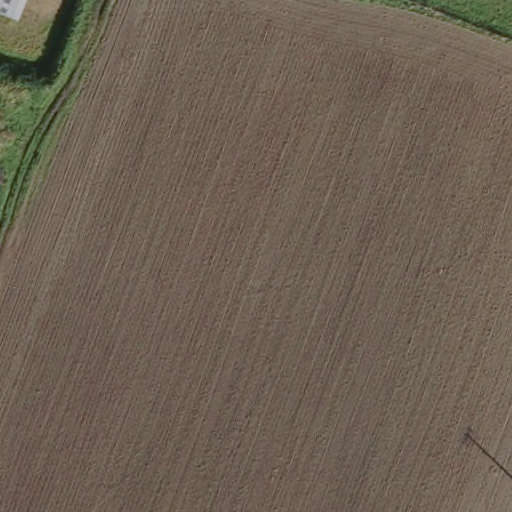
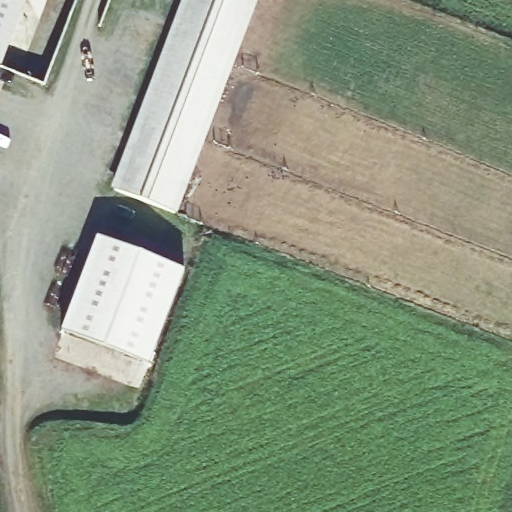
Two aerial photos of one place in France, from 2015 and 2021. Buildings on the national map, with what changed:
new [(0,68),(0,0),(28,0),(3,69),(0,68)]
new [(183,0),(257,0),(177,213),(111,187),(183,0)]
new [(185,270),(149,365),(62,330),(98,237),(185,270)]

